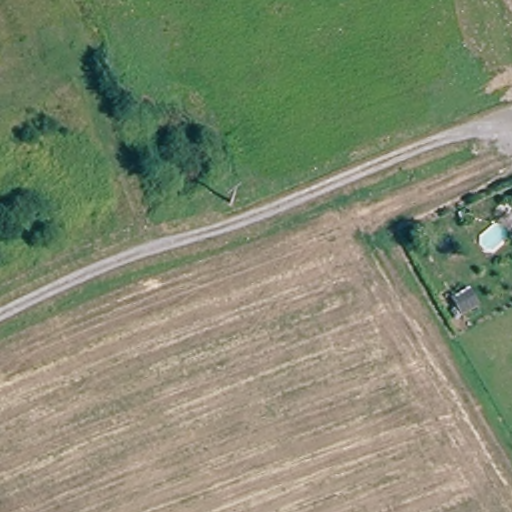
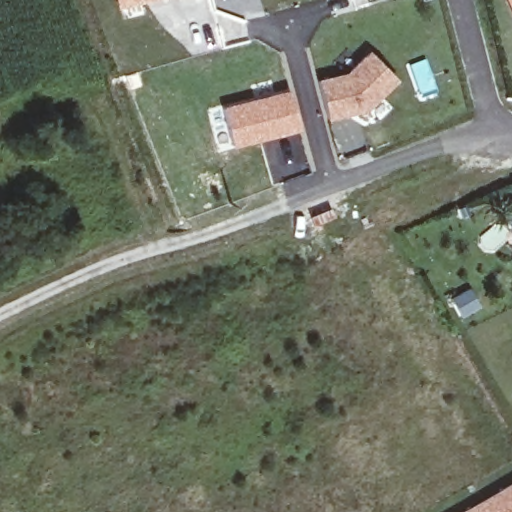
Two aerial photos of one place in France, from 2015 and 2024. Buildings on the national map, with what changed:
new [(118,9),(115,0),(151,0),(118,9)]
new [(398,80),(366,111),(329,118),(319,80),(347,72),(369,52),(398,80)]
new [(288,88),(300,129),(233,149),(221,106),(288,88)]
unchanged [(483,303),(471,310),(461,293),(473,286),(483,303)]
new [(461,512),(512,482),(512,512),(461,512)]

